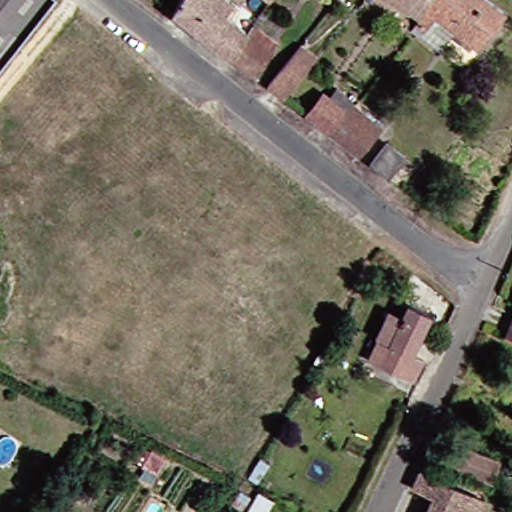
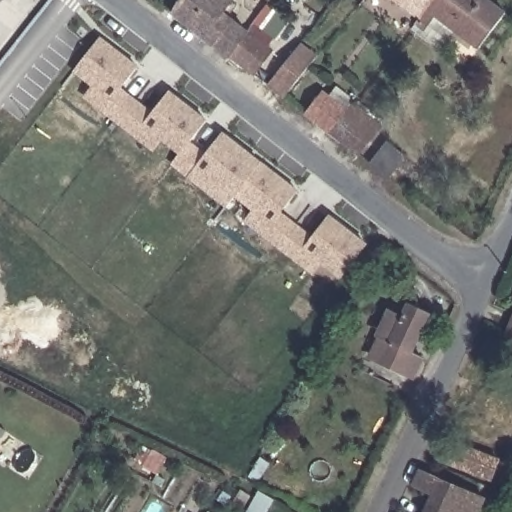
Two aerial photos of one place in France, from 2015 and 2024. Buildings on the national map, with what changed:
unchanged [(0,57),(0,0),(44,0),(0,57)]
unchanged [(170,12),(177,0),(227,0),(237,8),(226,20),(242,34),(248,27),(270,45),(266,54),(250,75),(225,56),(170,12)]
unchanged [(409,21),(401,15),(382,0),(426,0),(409,21)]
unchanged [(400,33),(406,25),(409,21),(426,0),(472,0),(495,19),(467,54),(444,35),(428,54),(400,33)]
new [(330,214),(368,244),(340,279),(321,265),(313,276),(244,222),(252,211),(235,197),(226,208),(171,166),(180,155),(161,141),(153,152),(82,97),(91,86),(74,73),(101,37),(139,66),(122,88),(153,112),(170,90),(207,120),(190,141),(206,153),(224,132),(298,190),(282,212),(313,236),(330,214)]
unchanged [(301,43),(317,54),(285,99),(268,84),(301,43)]
unchanged [(351,155),(325,133),(303,117),(319,96),(340,113),(345,108),(370,129),(351,155)]
unchanged [(387,152),(406,166),(392,188),(373,173),(387,152)]
unchanged [(393,307),(397,299),(426,313),(407,354),(417,361),(408,378),(376,362),(400,311),(393,307)]
unchanged [(511,340),(512,338),(512,340),(511,340)]
unchanged [(448,444),(490,463),(480,485),(439,466),(448,444)]
unchanged [(405,487),(413,469),(478,499),(473,512),(420,512),(427,497),(405,487)]
unchanged [(271,510),(270,512),(256,512),(260,504),(271,510)]

